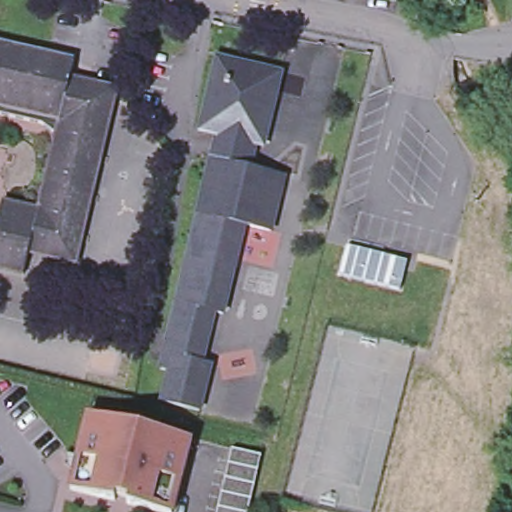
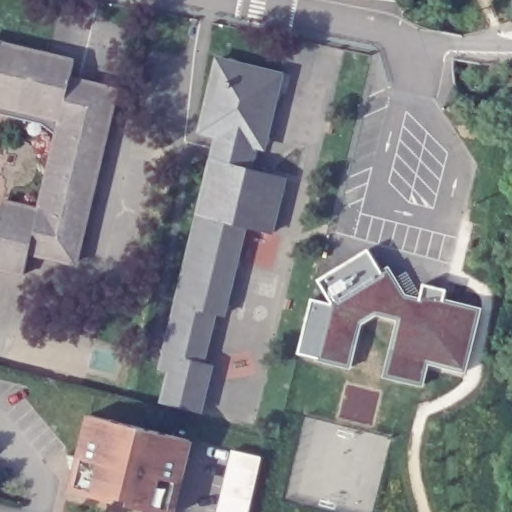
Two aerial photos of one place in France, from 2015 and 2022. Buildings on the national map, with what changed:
unchanged [(43,108),(10,100),(7,96),(0,95),(0,39),(76,56),(72,74),(67,92),(62,110),(47,106),(43,108)]
unchanged [(198,358),(206,360),(195,404),(157,395),(164,365),(154,362),(193,208),(192,205),(205,152),(207,152),(213,128),(200,125),(217,54),(280,69),(262,142),(255,140),(248,165),(282,173),(268,227),(242,220),(220,308),(211,306),(198,358)]
unchanged [(62,110),(67,92),(83,96),(85,90),(105,95),(100,115),(108,117),(73,259),(28,249),(40,204),(62,110)]
unchanged [(23,268),(0,263),(0,195),(40,204),(28,249),(23,268)]
new [(368,246),(382,268),(390,265),(407,293),(422,297),(425,281),(447,286),(445,298),(483,306),(467,373),(427,363),(423,386),(385,376),(398,318),(377,313),(361,322),(352,368),(318,359),(319,355),(299,350),(312,297),(333,302),(318,278),(368,246)]
unchanged [(120,497),(118,501),(73,491),(92,416),(193,440),(176,512),(161,512),(129,504),(130,499),(120,497)]
unchanged [(235,452),(265,459),(251,512),(220,512),(235,452)]

